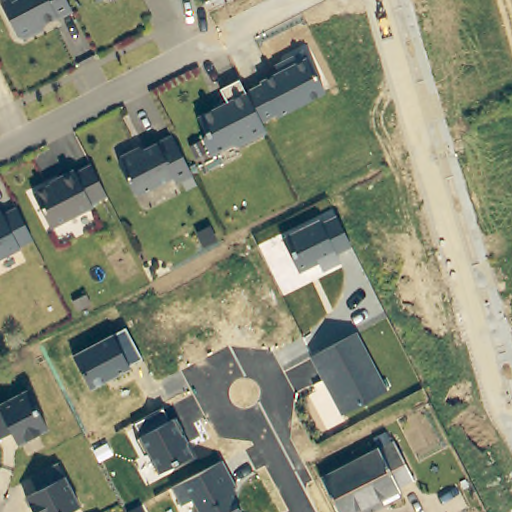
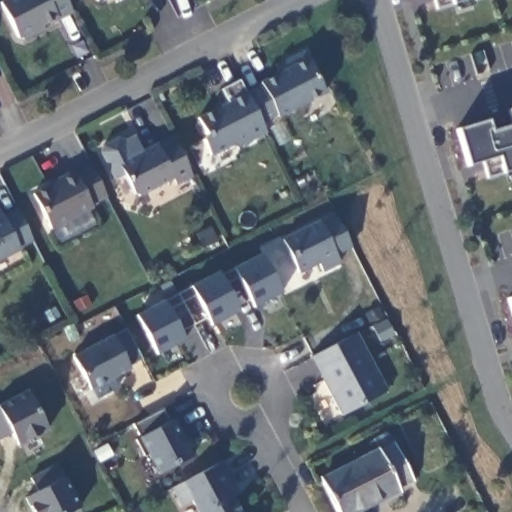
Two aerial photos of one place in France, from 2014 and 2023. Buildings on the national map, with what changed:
unchanged [(74,13),(58,21),(58,19),(35,31),(33,36),(25,40),(19,39),(2,4),(9,0),(67,0),(74,13)]
unchanged [(99,2),(98,0),(103,0),(99,2)]
new [(471,2),(472,7),(458,11),(455,4),(451,5),(436,10),(433,0),(477,0),(471,2)]
unchanged [(246,97),(244,92),(261,84),(260,82),(277,73),(274,66),(303,53),(324,93),(260,124),(246,97)]
unchanged [(246,97),(264,131),(234,147),(228,145),(208,155),(200,140),(204,134),(195,118),(224,103),(218,89),(237,79),(246,97)]
new [(512,109),(512,118),(509,110),(512,109)]
new [(491,132),(512,126),(512,179),(507,180),(505,173),(503,174),(486,179),(481,162),(469,166),(457,130),(488,121),(491,132)]
unchanged [(189,178),(173,187),(169,180),(136,197),(130,195),(115,165),(117,159),(127,154),(133,156),(168,138),(189,178)]
unchanged [(92,206),(94,209),(52,230),(34,196),(60,182),(59,180),(75,172),(76,175),(92,167),(108,198),(92,206)]
unchanged [(34,242),(20,249),(21,251),(0,262),(0,210),(4,218),(18,211),(34,242)]
unchanged [(338,254),(342,262),(325,271),(321,261),(300,271),(282,239),(320,219),(322,222),(336,215),(352,246),(338,254)]
new [(260,253),(282,292),(254,307),(250,297),(237,304),(239,311),(212,326),(207,315),(182,330),(187,339),(158,355),(135,315),(260,253)]
new [(512,307),(509,298),(512,297),(512,307)]
unchanged [(91,389),(73,356),(125,327),(143,359),(91,389)]
unchanged [(342,416),(311,358),(356,333),(387,392),(342,416)]
unchanged [(19,446),(13,434),(0,441),(0,407),(29,392),(49,431),(19,446)]
unchanged [(158,475),(133,426),(163,410),(170,420),(173,418),(193,456),(158,475)]
unchanged [(396,443),(415,479),(401,487),(402,490),(356,512),(338,512),(321,480),(396,443)]
unchanged [(183,507),(175,490),(222,464),(236,491),(232,494),(241,512),(197,512),(190,502),(183,507)]
unchanged [(39,492),(32,479),(59,465),(82,509),(75,512),(34,512),(27,499),(39,492)]

